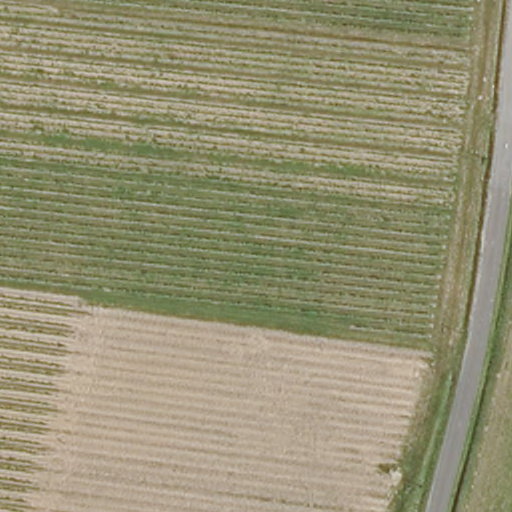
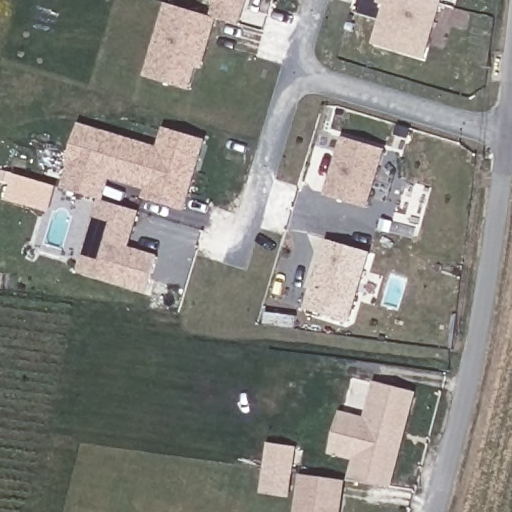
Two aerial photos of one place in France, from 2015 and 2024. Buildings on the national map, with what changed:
new [(236,26),(213,19),(210,17),(214,2),(205,0),(243,0),(236,26)]
new [(384,7),(377,5),(378,0),(440,0),(421,61),(373,46),(384,7)]
new [(169,2),(210,17),(213,19),(198,69),(194,67),(187,90),(144,77),(169,2)]
new [(164,127),(207,141),(187,211),(144,198),(146,191),(111,180),(105,200),(63,187),(81,123),(158,148),(164,127)]
new [(337,137),(387,152),(369,210),(320,195),(337,137)]
new [(6,200),(11,184),(1,181),(4,171),(57,187),(51,213),(6,200)]
new [(99,201),(136,212),(125,250),(156,258),(146,292),(78,272),(99,201)]
new [(323,244),(366,256),(347,322),(307,311),(323,244)]
new [(329,455),(338,417),(363,423),(372,386),(410,395),(393,468),(388,488),(350,482),(355,461),(329,455)]
new [(342,485),(340,501),(339,512),(298,512),(300,493),(302,478),(342,485)]

